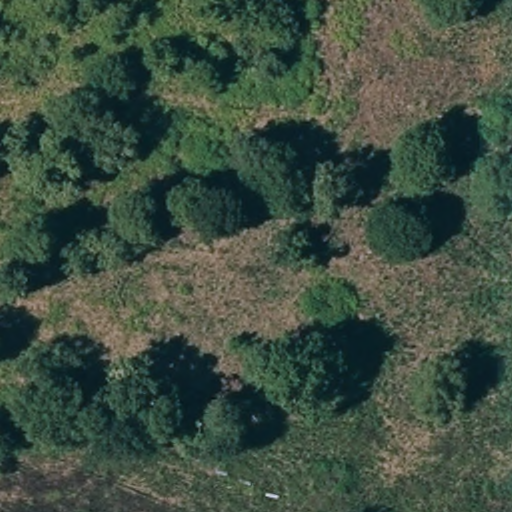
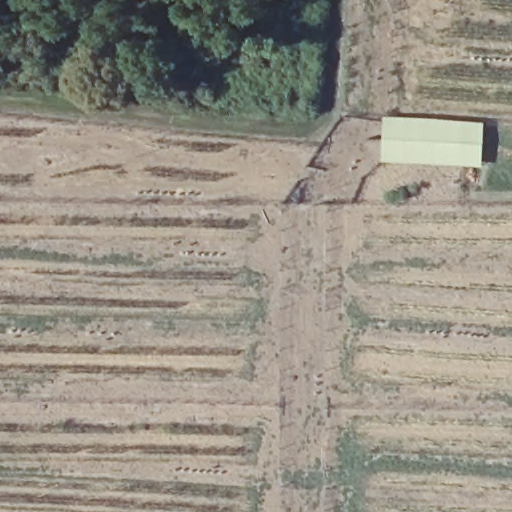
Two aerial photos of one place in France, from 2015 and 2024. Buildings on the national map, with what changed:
new [(484,123),(482,167),(382,162),(384,117),(484,123)]

